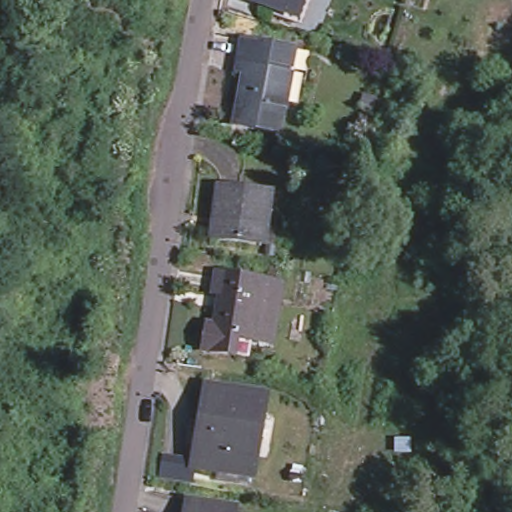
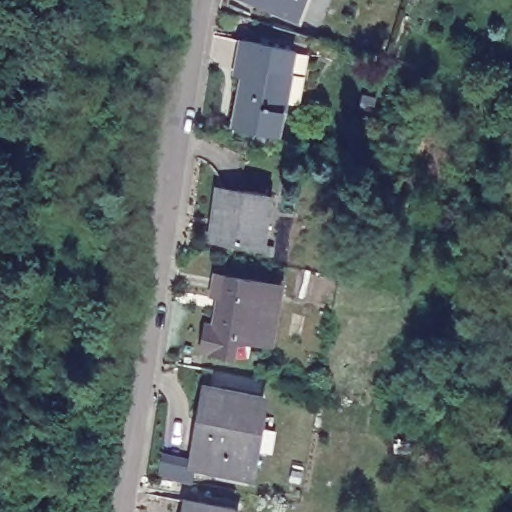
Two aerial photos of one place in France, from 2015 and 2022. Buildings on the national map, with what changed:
unchanged [(268,0),(289,0),(286,7),(268,0)]
unchanged [(233,127),(242,66),(235,65),(238,42),(292,49),(279,134),(233,127)]
unchanged [(213,233),(218,182),(268,189),(263,240),(213,233)]
unchanged [(228,349),(200,344),(204,320),(212,321),(218,289),(211,287),(213,270),(277,282),(267,338),(247,334),(243,352),(228,349)]
unchanged [(191,459),(197,422),(201,423),(209,381),(263,391),(248,470),(191,459)]
unchanged [(183,498),(233,507),(232,512),(181,512),(183,498)]

